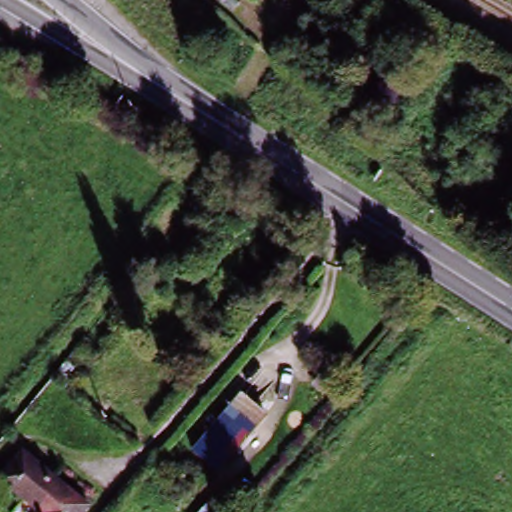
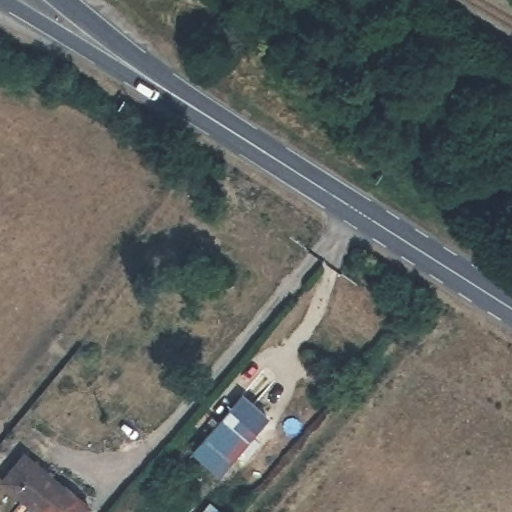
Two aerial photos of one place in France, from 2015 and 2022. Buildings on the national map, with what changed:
unchanged [(338,0),(369,0),(361,14),(338,0)]
unchanged [(220,189),(233,192),(234,200),(237,204),(232,209),(226,209),(215,223),(202,212),(220,189)]
unchanged [(270,418),(234,459),(209,440),(245,398),(270,418)]
unchanged [(29,459),(91,510),(89,512),(42,512),(8,484),(29,459)]
unchanged [(219,512),(202,512),(210,504),(219,512)]

